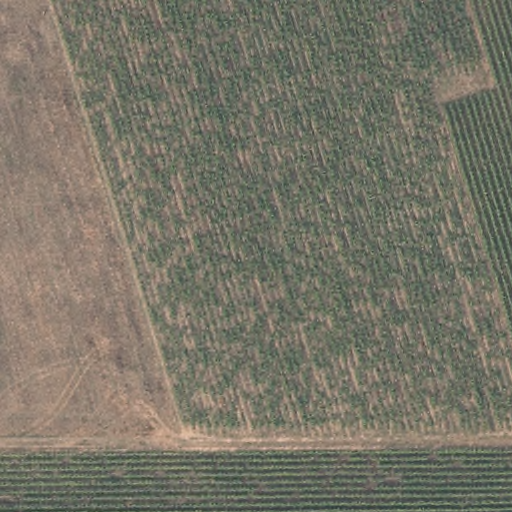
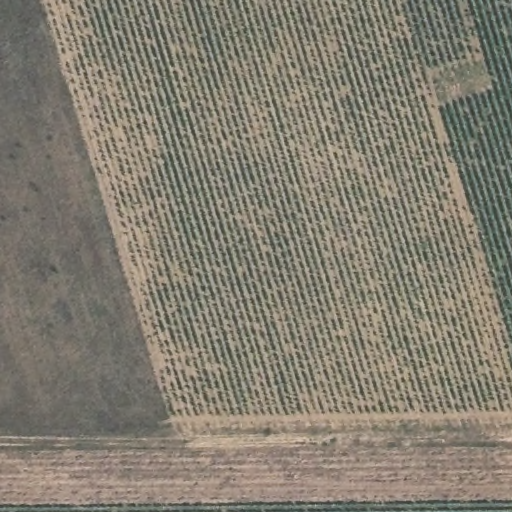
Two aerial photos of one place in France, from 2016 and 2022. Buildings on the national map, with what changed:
[]

